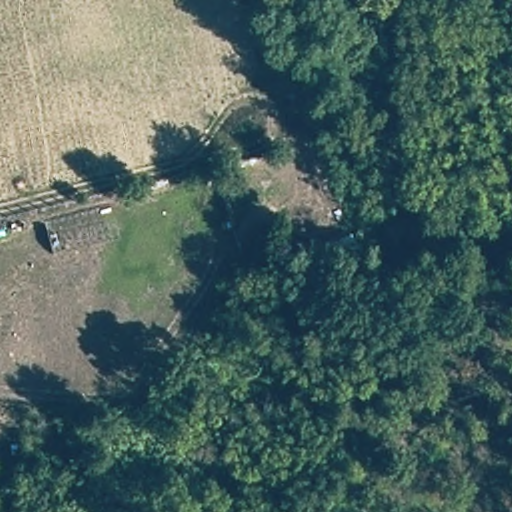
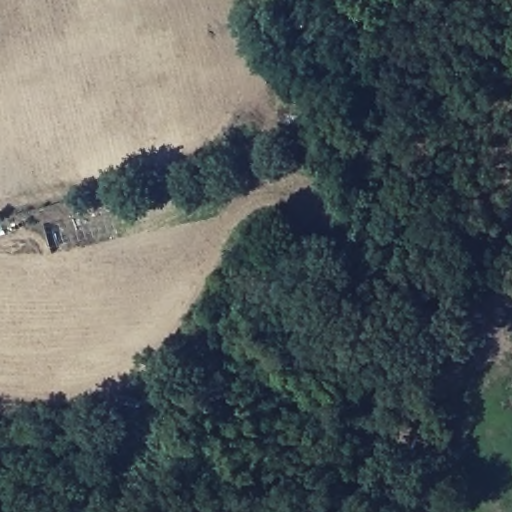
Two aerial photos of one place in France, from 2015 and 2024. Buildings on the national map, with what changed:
unchanged [(333,192),(321,193),(320,177),(331,177),(333,192)]

